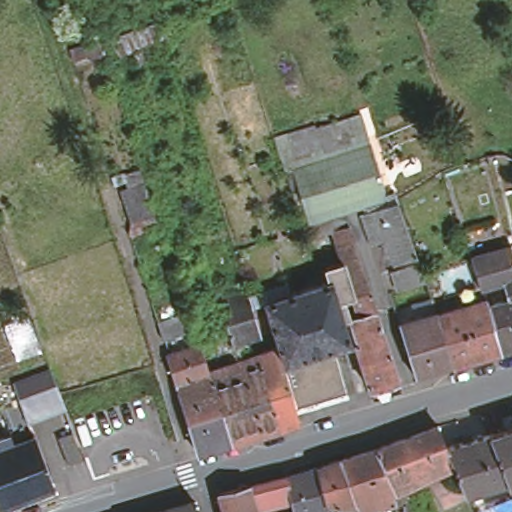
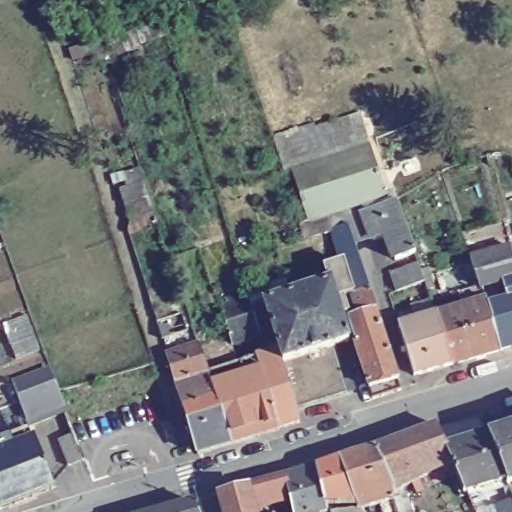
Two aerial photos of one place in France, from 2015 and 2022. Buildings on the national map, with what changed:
unchanged [(67,49),(97,38),(98,44),(102,57),(93,61),(90,52),(71,59),(70,54),(67,49)]
unchanged [(313,123),(317,135),(322,133),(320,124),(357,113),(369,147),(292,170),(282,172),(270,135),(313,123)]
unchanged [(276,350),(273,332),(232,345),(218,303),(247,295),(247,297),(287,285),(290,295),(330,282),(325,270),(342,265),(332,231),(324,234),(320,219),(310,222),(292,170),(369,147),(385,196),(392,193),(395,201),(396,200),(397,204),(415,255),(395,262),(387,237),(373,240),(372,237),(353,243),(366,281),(370,291),(377,313),(375,313),(400,391),(371,400),(353,345),(355,343),(347,317),(355,315),(352,296),(351,294),(335,300),(347,342),(280,362),(276,350)]
unchanged [(129,236),(130,221),(125,205),(120,189),(141,182),(147,199),(152,215),(155,223),(129,236)]
unchanged [(479,292),(470,264),(502,255),(500,249),(507,247),(510,253),(510,252),(512,258),(512,284),(502,287),(479,292)]
unchanged [(435,286),(427,288),(425,282),(398,291),(392,272),(418,264),(420,271),(428,267),(435,286)]
unchanged [(488,312),(507,305),(502,287),(512,284),(512,353),(500,356),(485,312),(488,312)]
unchanged [(483,307),(486,306),(488,312),(485,312),(500,356),(451,371),(436,321),(483,307)]
unchanged [(180,316),(186,335),(162,342),(156,323),(180,316)]
unchanged [(451,371),(413,382),(398,332),(436,321),(451,371)]
unchanged [(165,355),(198,345),(208,372),(215,397),(182,407),(165,355)]
unchanged [(280,362),(288,389),(287,390),(293,412),(297,423),(277,430),(256,357),(276,350),(280,362)]
unchanged [(262,435),(230,445),(215,397),(208,372),(256,357),(277,430),(262,435)]
unchanged [(55,381),(57,387),(63,402),(27,417),(25,417),(25,416),(18,397),(17,395),(19,394),(55,381)]
unchanged [(197,455),(182,407),(215,397),(230,445),(197,455)]
unchanged [(501,482),(500,481),(502,480),(484,435),(512,426),(512,482),(502,486),(501,482)]
unchanged [(441,447),(440,448),(448,466),(447,467),(413,483),(391,442),(431,427),(441,447)]
unchanged [(0,505),(0,436),(9,432),(13,441),(34,433),(54,485),(0,505)]
unchanged [(67,467),(57,441),(73,435),(83,461),(67,467)]
unchanged [(502,480),(500,481),(501,482),(463,493),(460,495),(447,467),(448,466),(440,448),(441,447),(484,435),(502,480)]
unchanged [(413,483),(389,495),(368,452),(391,442),(413,483)]
unchanged [(357,512),(353,512),(352,510),(351,505),(337,461),(368,452),(389,495),(387,495),(390,502),(357,512)]
unchanged [(351,505),(318,505),(310,469),(337,461),(351,505)]
unchanged [(253,512),(247,487),(281,479),(310,469),(318,505),(320,512),(286,512),(283,503),(253,512)]
unchanged [(243,488),(249,512),(219,512),(215,496),(243,488)]
unchanged [(510,493),(512,498),(512,512),(506,512),(499,498),(510,493)]
unchanged [(402,499),(407,512),(393,512),(390,502),(402,499)]
unchanged [(192,512),(159,512),(188,503),(192,512)]

